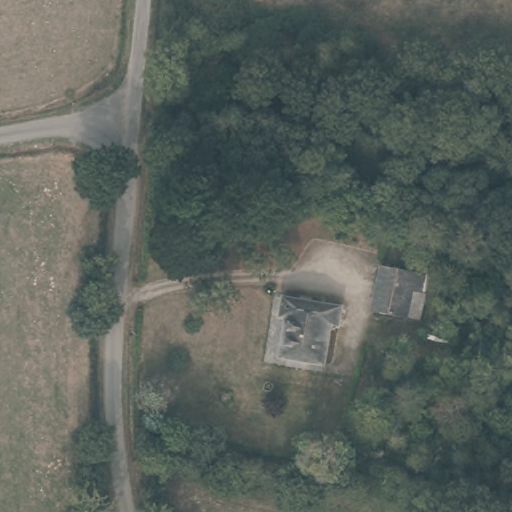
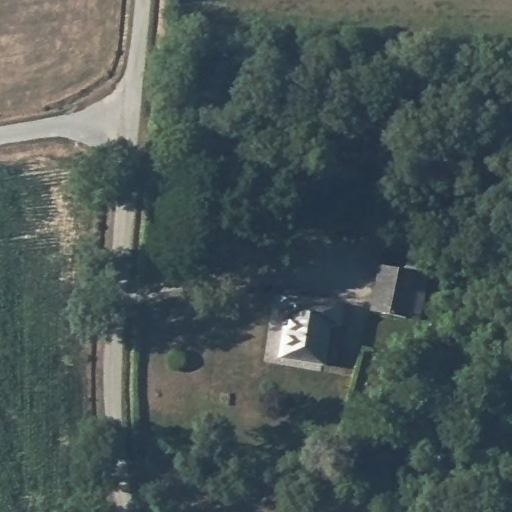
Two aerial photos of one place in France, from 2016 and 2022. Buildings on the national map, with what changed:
unchanged [(420,288),(410,288),(406,315),(371,311),(377,267),(421,272),(420,288)]
unchanged [(340,307),(338,327),(328,326),(323,365),(280,360),(283,321),(277,320),(280,300),(340,307)]

